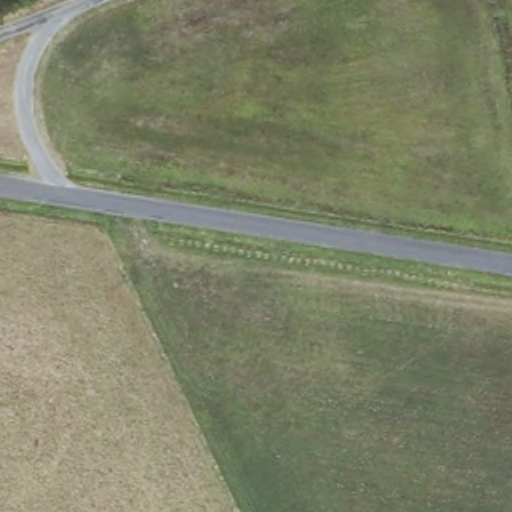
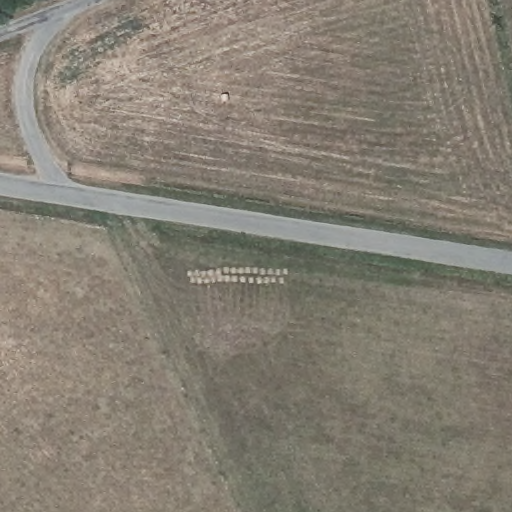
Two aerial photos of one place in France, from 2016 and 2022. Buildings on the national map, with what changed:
[]

